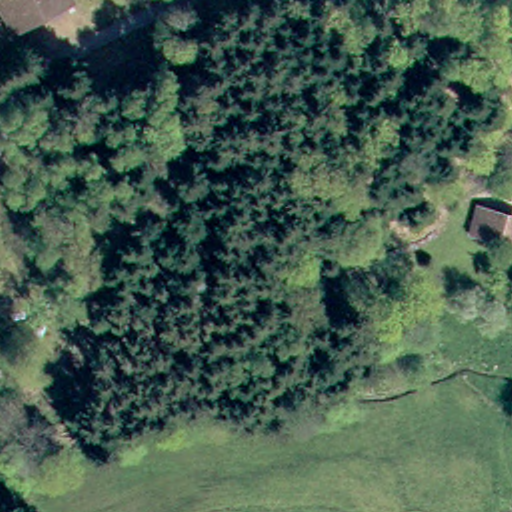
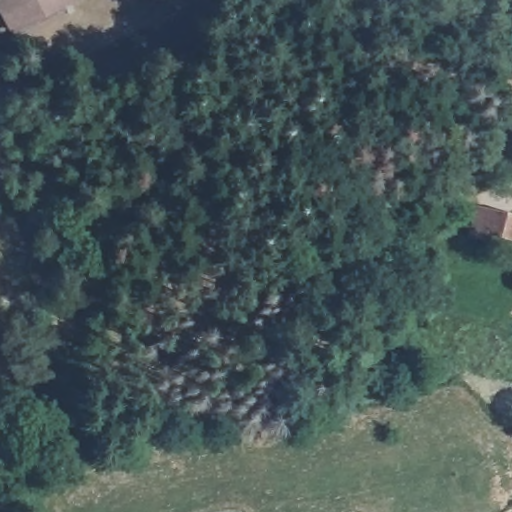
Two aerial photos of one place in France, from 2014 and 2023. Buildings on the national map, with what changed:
unchanged [(0,0),(69,0),(70,4),(12,31),(0,4),(0,0)]
unchanged [(497,214),(512,219),(512,226),(509,238),(490,232),(497,214)]

